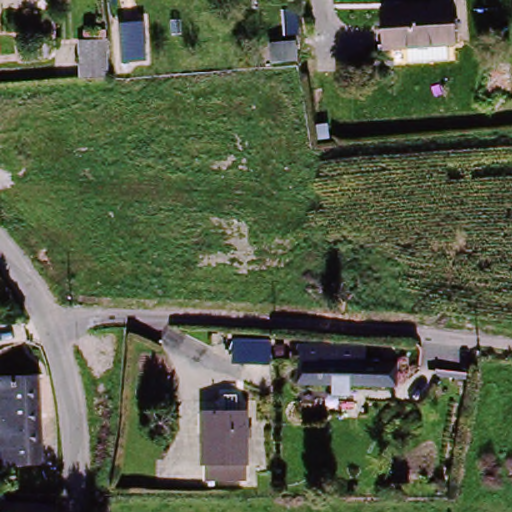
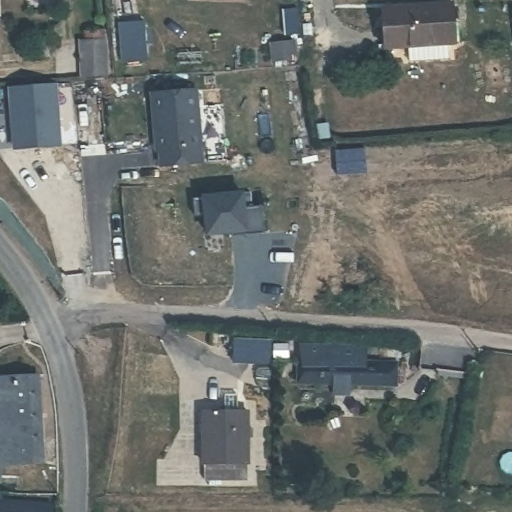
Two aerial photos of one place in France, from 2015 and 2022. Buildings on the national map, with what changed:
unchanged [(384,55),(382,12),(452,9),(453,52),(384,55)]
unchanged [(123,61),(120,24),(142,22),(144,60),(123,61)]
unchanged [(82,78),(78,45),(103,43),(105,77),(82,78)]
new [(51,85),(56,147),(12,150),(7,89),(51,85)]
new [(192,93),(198,167),(155,170),(155,155),(152,153),(150,137),(154,136),(153,121),(150,120),(148,96),(192,93)]
new [(264,232),(232,239),(230,235),(205,239),(202,217),(194,219),(192,201),(201,201),(200,196),(243,190),(245,207),(260,207),(264,232)]
unchanged [(271,363),(233,363),(233,342),(271,343),(271,363)]
unchanged [(362,368),(392,368),(392,391),(299,391),(299,369),(320,368),(319,352),(362,352),(362,368)]
unchanged [(22,382),(45,381),(50,463),(26,465),(22,382)]
unchanged [(22,382),(26,465),(0,467),(0,386),(1,382),(22,382)]
unchanged [(245,415),(243,485),(202,483),(205,413),(245,415)]
unchanged [(0,508),(39,512),(0,512),(0,508)]

